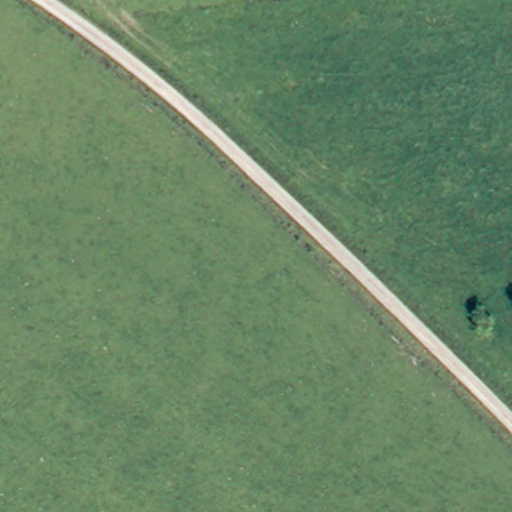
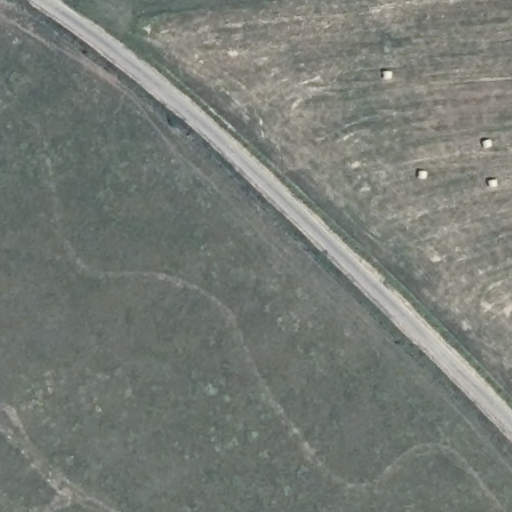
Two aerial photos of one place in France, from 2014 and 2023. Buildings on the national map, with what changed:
[]

